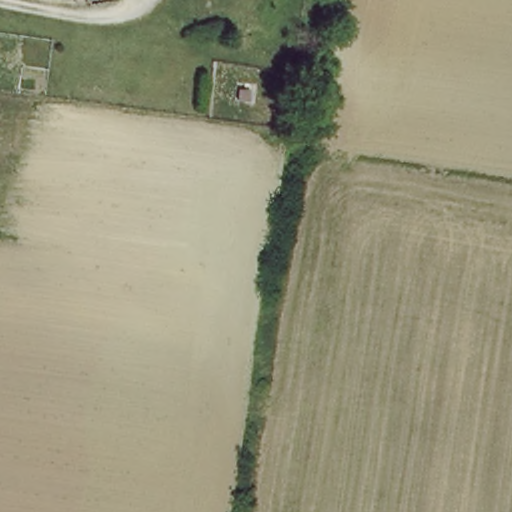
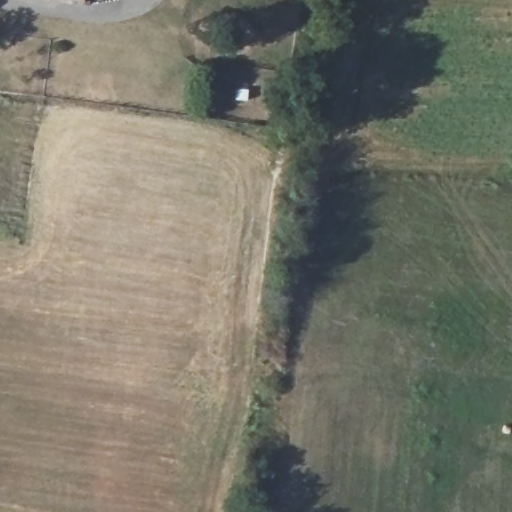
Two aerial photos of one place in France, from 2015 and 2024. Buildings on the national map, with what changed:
[]

